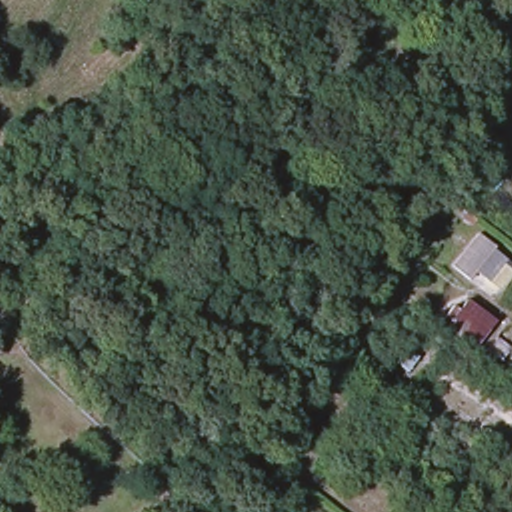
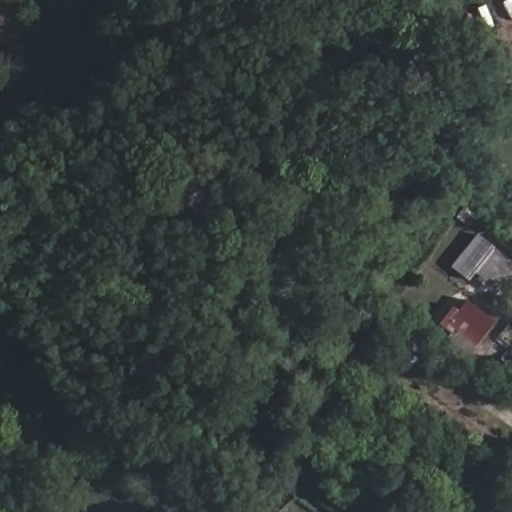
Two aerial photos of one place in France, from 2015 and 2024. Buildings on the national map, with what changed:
unchanged [(492,247),(505,257),(503,261),(488,279),(475,268),(475,269),(469,277),(452,263),(458,256),(473,237),(478,232),(494,245),(492,247)]
unchanged [(480,346),(454,328),(462,308),(492,328),(480,346)]

